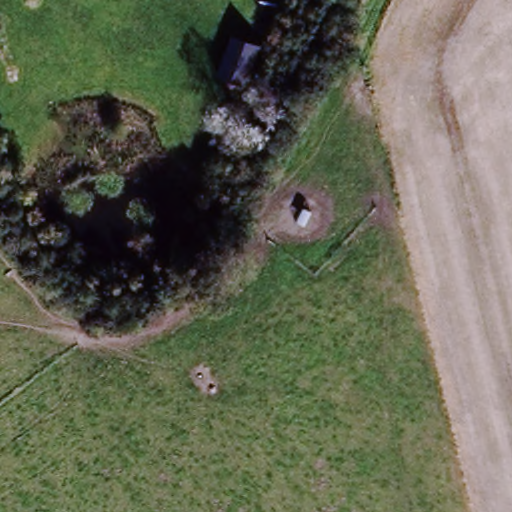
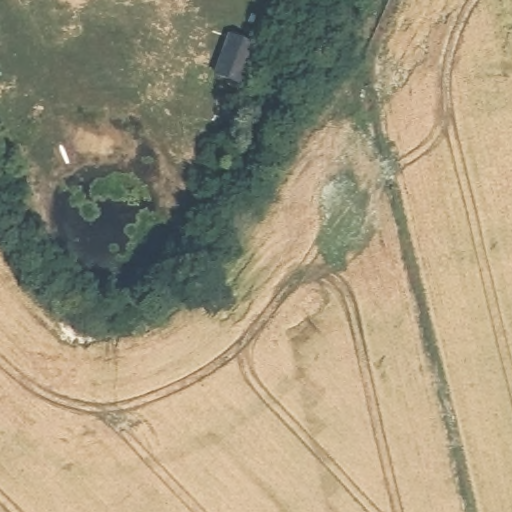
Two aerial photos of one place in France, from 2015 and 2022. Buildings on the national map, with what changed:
unchanged [(257,56),(246,82),(220,70),(231,44),(257,56)]

